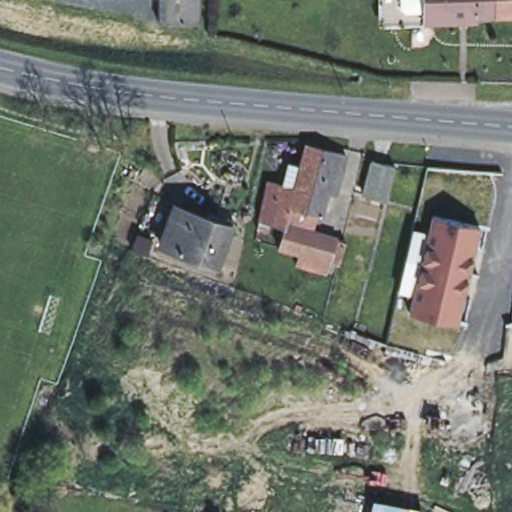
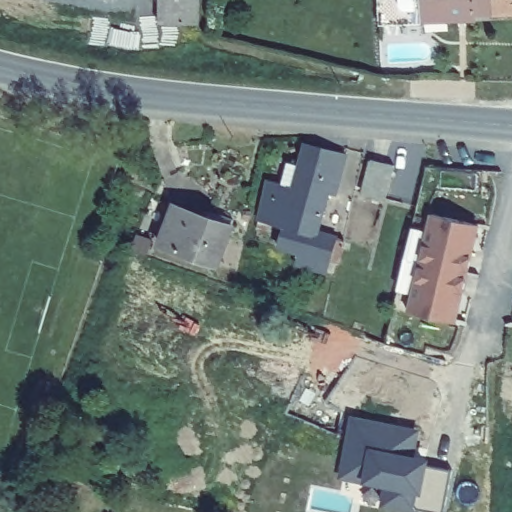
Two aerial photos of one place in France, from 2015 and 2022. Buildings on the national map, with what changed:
unchanged [(196,22),(158,21),(159,0),(196,0),(196,22)]
unchanged [(422,21),(411,22),(411,78),(388,77),(387,0),(422,0),(422,21)]
unchanged [(474,12),(447,13),(447,11),(425,12),(425,21),(422,21),(422,0),(474,0),(474,12)]
unchanged [(512,11),(474,12),(474,0),(512,0),(512,11)]
unchanged [(305,143),(345,154),(335,191),(328,189),(321,215),(317,213),(288,205),(300,163),(305,143)]
unchanged [(395,165),(386,198),(362,191),(371,159),(395,165)]
unchanged [(268,222),(266,230),(256,227),(269,180),(282,183),(287,160),(300,163),(288,205),(282,226),(268,222)]
unchanged [(235,225),(220,264),(165,242),(180,204),(235,225)]
unchanged [(295,263),(298,252),(298,250),(278,244),(282,226),(288,205),(317,213),(312,229),(337,237),(330,261),(326,272),(295,263)]
unchanged [(428,232),(432,212),(478,223),(456,320),(410,309),(414,290),(397,286),(411,228),(428,232)]
unchanged [(157,239),(151,255),(137,249),(143,232),(157,239)]
new [(415,432),(410,457),(425,460),(424,463),(452,469),(444,512),(431,512),(385,502),(389,483),(344,474),(355,420),(415,432)]
demolished [(421,512),(368,512),(370,500),(421,510),(421,512)]

